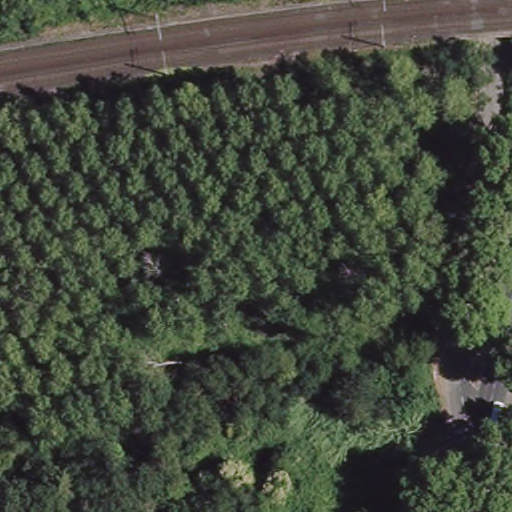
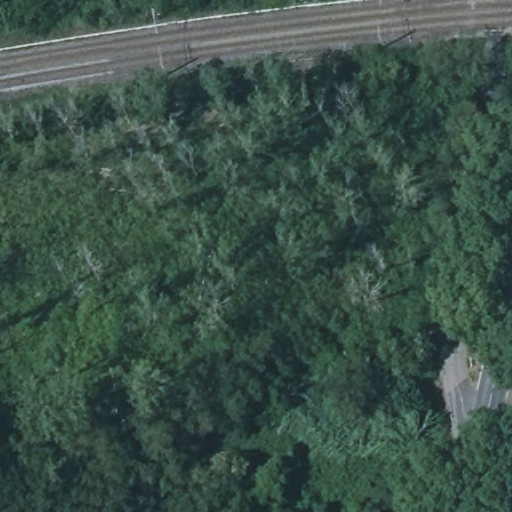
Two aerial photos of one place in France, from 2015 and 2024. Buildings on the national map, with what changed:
[]

